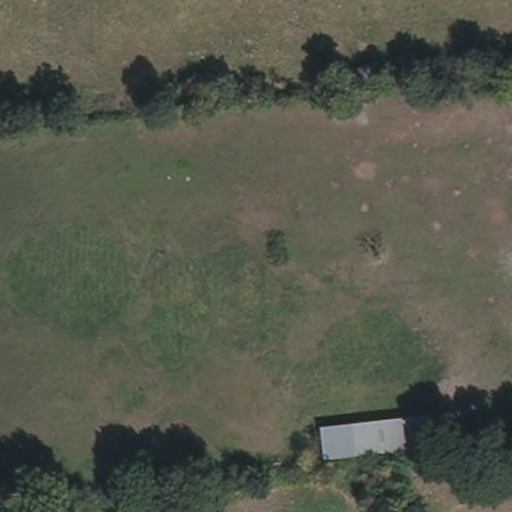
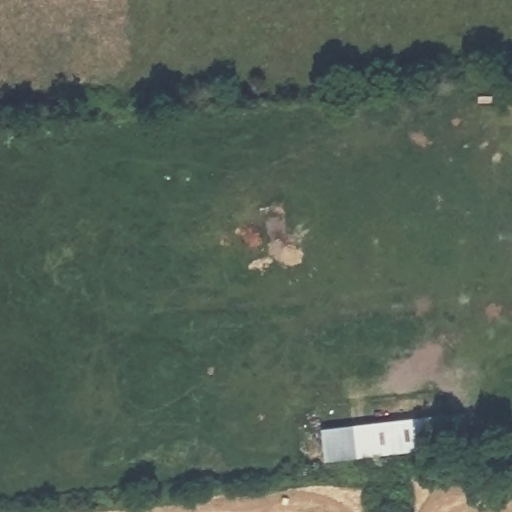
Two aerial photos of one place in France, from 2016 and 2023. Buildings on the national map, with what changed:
unchanged [(464,444),(321,464),(317,430),(464,411),(464,444)]

